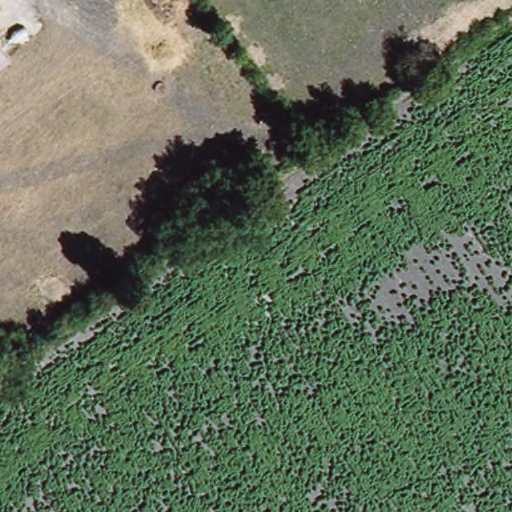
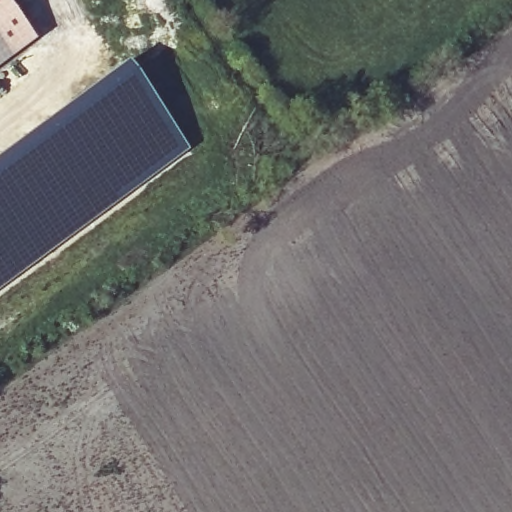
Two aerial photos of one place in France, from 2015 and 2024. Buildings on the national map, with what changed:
unchanged [(10,61),(0,67),(0,47),(10,61)]
new [(3,162),(0,159),(0,156),(65,105),(123,62),(188,150),(113,208),(0,290),(0,165),(3,162)]

